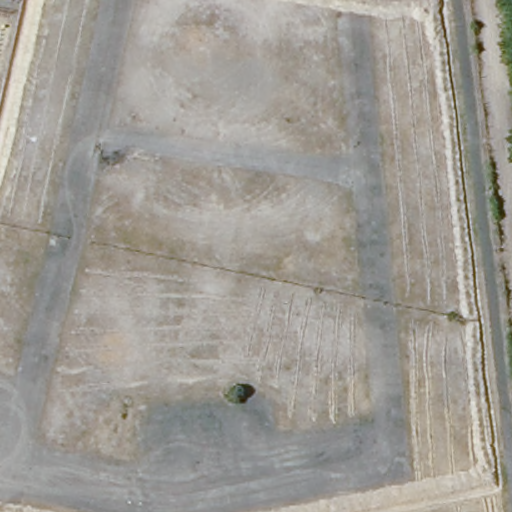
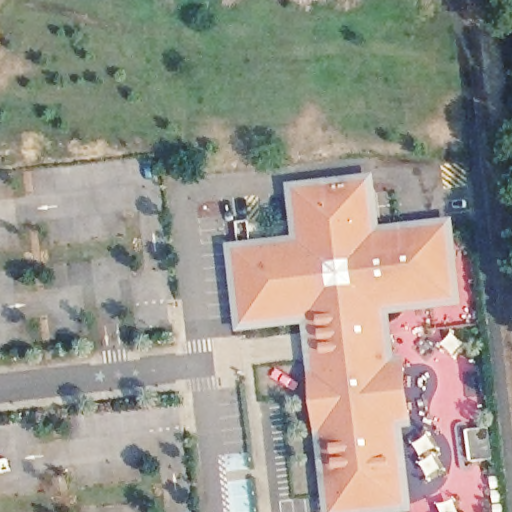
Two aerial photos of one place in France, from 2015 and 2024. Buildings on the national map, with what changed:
new [(416,429),(406,430),(415,512),(327,512),(305,327),(240,332),(229,245),(294,236),(289,185),(375,174),(382,228),(455,220),(465,308),(393,316),(398,358),(407,357),(416,429)]

